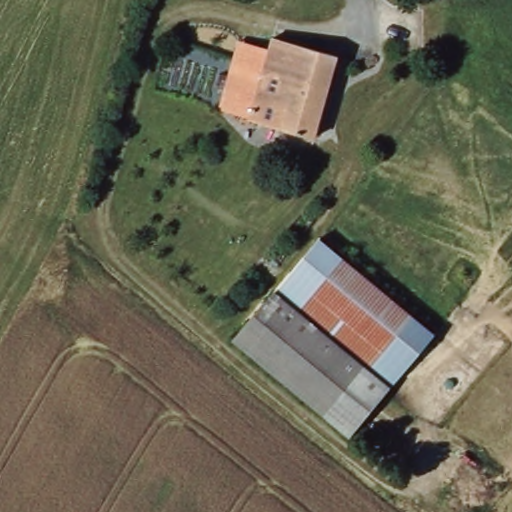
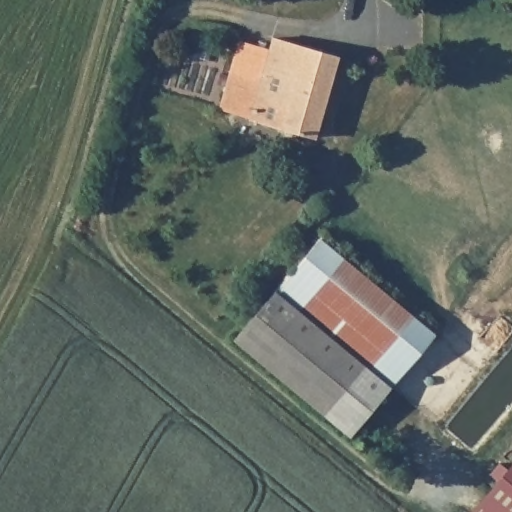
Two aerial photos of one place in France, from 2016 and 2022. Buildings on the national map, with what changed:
unchanged [(239,73),(263,80),(278,36),(339,56),(314,136),(228,108),(239,73)]
unchanged [(275,293),(316,237),(411,310),(384,346),(370,365),(275,293)]
unchanged [(370,365),(331,416),(236,345),(275,293),(370,365)]
unchanged [(411,310),(426,323),(435,331),(357,436),(331,416),(370,365),(384,346),(411,310)]
new [(471,512),(512,462),(512,512),(471,512)]

